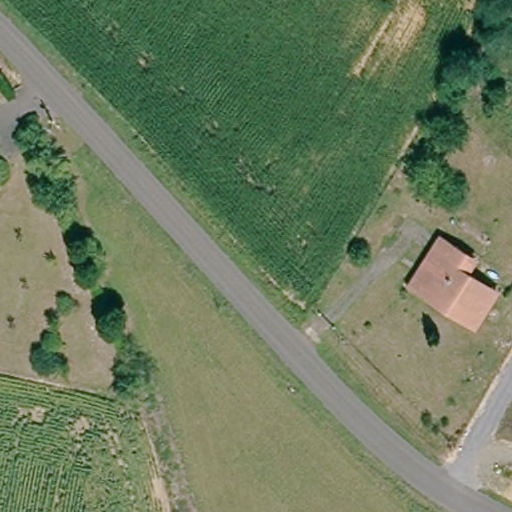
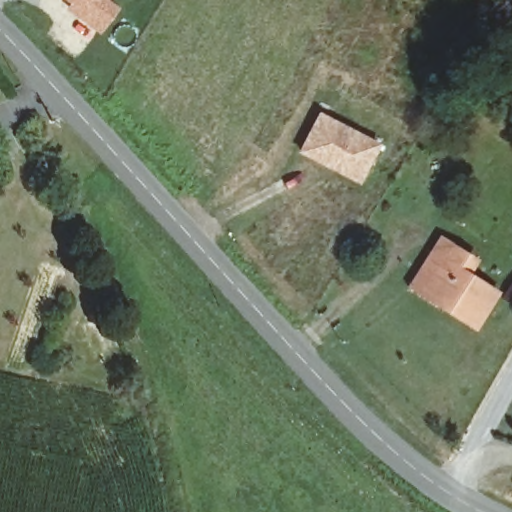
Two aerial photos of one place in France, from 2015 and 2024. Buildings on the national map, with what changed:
new [(100,34),(64,7),(67,4),(63,0),(113,0),(121,6),(100,34)]
new [(381,144),(360,184),(298,153),(319,111),(381,144)]
unchanged [(477,262),(471,277),(497,294),(476,331),(448,313),(412,292),(435,254),(443,240),(477,262)]

